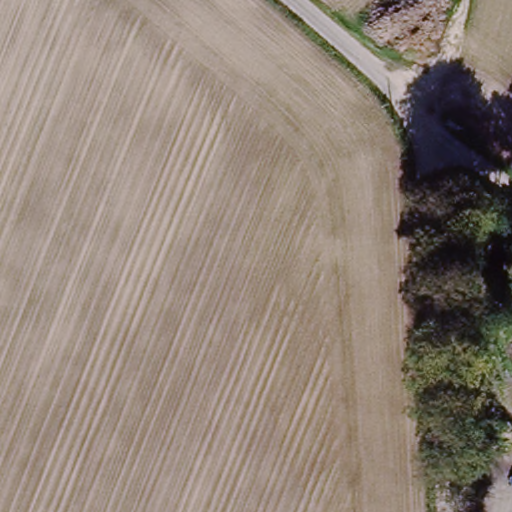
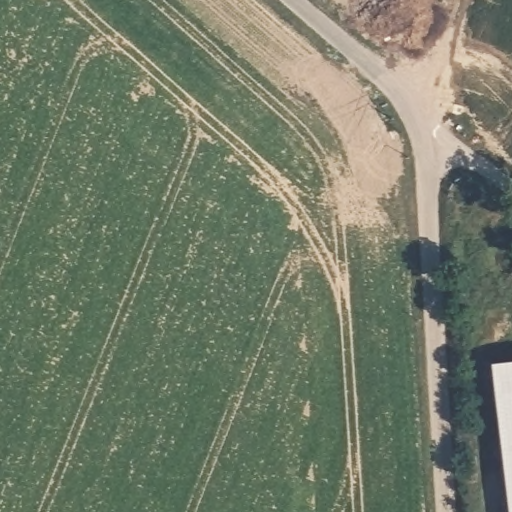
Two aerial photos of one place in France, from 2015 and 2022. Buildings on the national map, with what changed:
new [(512,360),(512,512),(510,512),(493,362),(512,360)]

